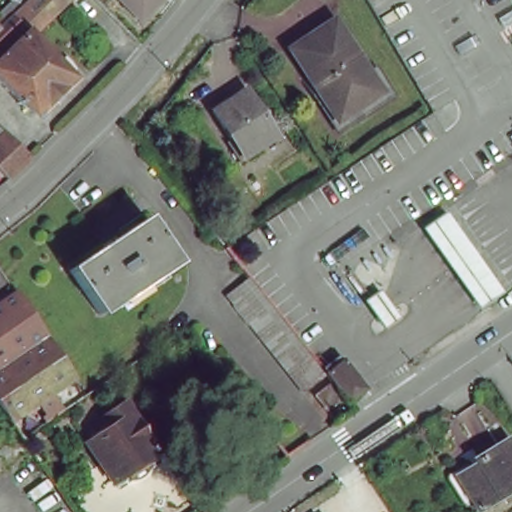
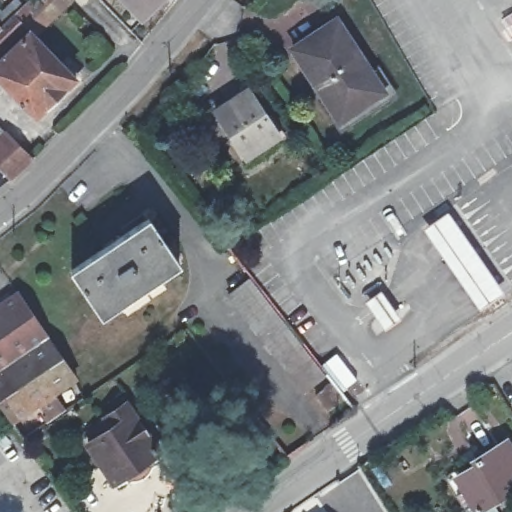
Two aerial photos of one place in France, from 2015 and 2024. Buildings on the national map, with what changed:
unchanged [(64,7),(33,39),(28,33),(19,41),(0,60),(0,26),(27,0),(72,0),(64,7)]
unchanged [(177,2),(149,30),(120,0),(175,0),(177,2)]
unchanged [(341,25),(386,95),(344,124),(296,52),(341,25)]
unchanged [(19,41),(28,33),(33,39),(73,79),(32,117),(0,84),(0,60),(19,41)]
unchanged [(249,94),(284,136),(253,161),(218,119),(249,94)]
unchanged [(16,187),(0,170),(0,127),(12,140),(38,166),(16,187)]
unchanged [(449,208),(503,290),(478,306),(423,225),(449,208)]
unchanged [(151,217),(182,262),(104,315),(74,270),(151,217)]
unchanged [(322,373),(301,388),(226,293),(248,276),(322,373)]
unchanged [(14,420),(9,423),(0,407),(0,297),(16,281),(70,381),(14,420)]
unchanged [(385,311),(391,321),(377,331),(370,320),(385,311)]
unchanged [(312,394),(329,382),(323,375),(339,363),(362,392),(346,405),(340,397),(323,410),(312,394)]
unchanged [(128,417),(160,465),(115,495),(89,457),(113,442),(106,430),(128,417)]
unchanged [(512,463),(512,490),(477,512),(471,512),(454,485),(476,470),(472,462),(502,445),(512,463)]

